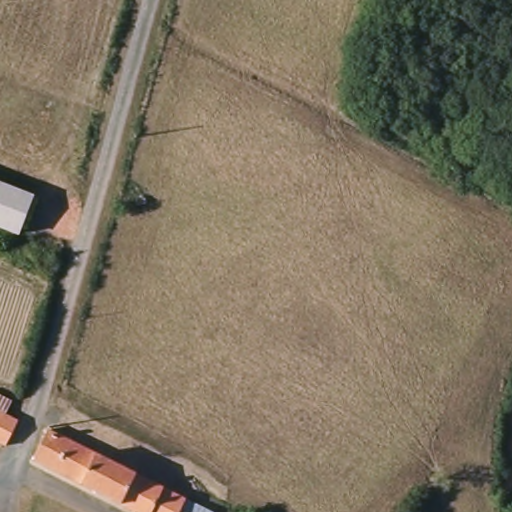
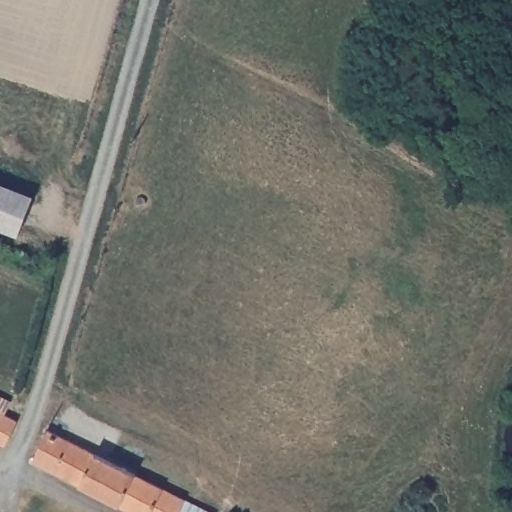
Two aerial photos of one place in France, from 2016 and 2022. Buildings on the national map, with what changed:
unchanged [(36,195),(21,231),(0,224),(0,182),(36,195)]
unchanged [(0,419),(0,412),(3,413),(0,419)]
unchanged [(52,425),(221,509),(218,512),(146,512),(37,455),(52,425)]

